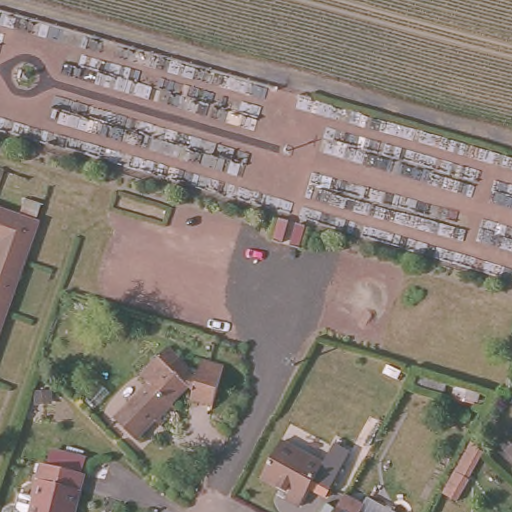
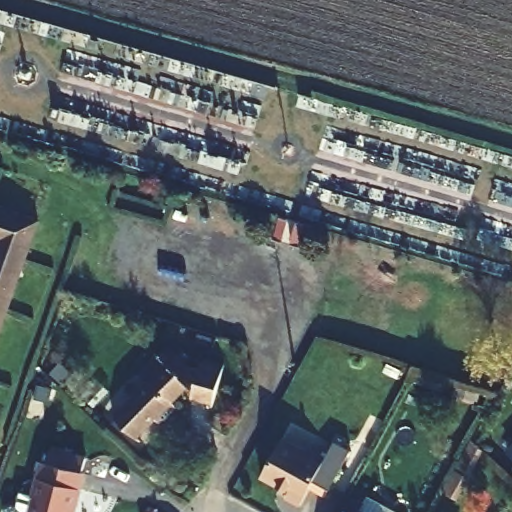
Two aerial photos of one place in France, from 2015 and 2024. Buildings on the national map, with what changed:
unchanged [(40,215),(0,330),(0,202),(40,215)]
unchanged [(210,413),(189,412),(190,404),(182,395),(163,411),(170,419),(153,435),(147,428),(127,447),(107,426),(142,392),(133,383),(153,365),(164,375),(173,366),(183,377),(193,378),(195,369),(216,372),(210,413)]
unchanged [(307,455),(318,435),(335,444),(310,488),(293,479),(283,497),(269,489),(272,484),(245,469),(265,432),(307,455)]
unchanged [(10,502),(15,503),(20,489),(34,493),(42,470),(82,483),(73,512),(67,511),(67,512),(2,512),(4,505),(10,502)]
unchanged [(356,511),(355,512),(332,512),(338,502),(356,511)]

